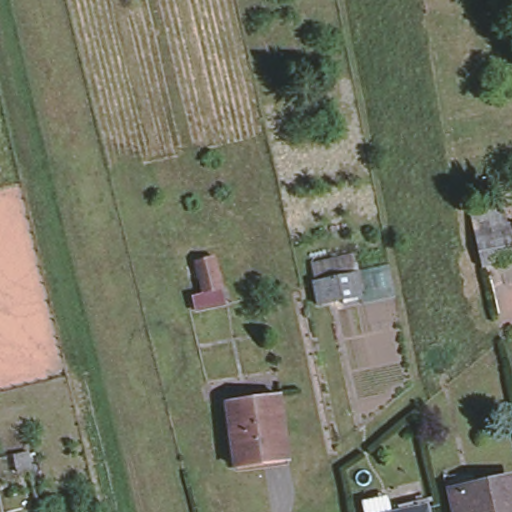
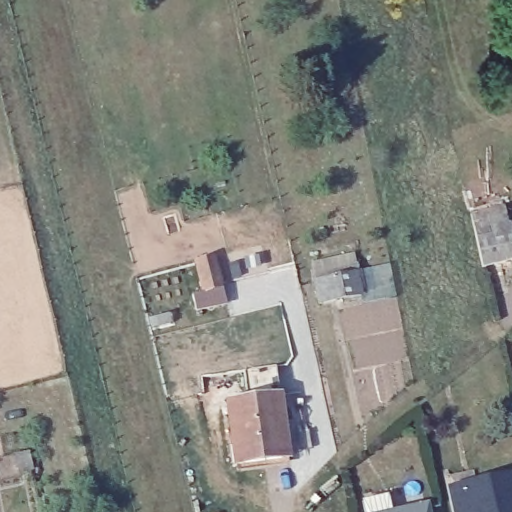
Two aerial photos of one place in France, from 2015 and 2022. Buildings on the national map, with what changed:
unchanged [(512,238),(512,248),(480,255),(473,221),(507,214),(512,238)]
unchanged [(213,252),(225,302),(192,310),(187,290),(200,287),(193,257),(213,252)]
unchanged [(363,289),(323,300),(317,279),(357,267),(363,289)]
unchanged [(285,418),(277,419),(282,459),(237,465),(228,400),(282,394),(285,418)]
unchanged [(454,512),(452,483),(512,477),(512,512),(454,512)]
unchanged [(380,497),(383,512),(369,512),(367,500),(380,497)]
unchanged [(383,512),(428,501),(431,512),(383,512)]

